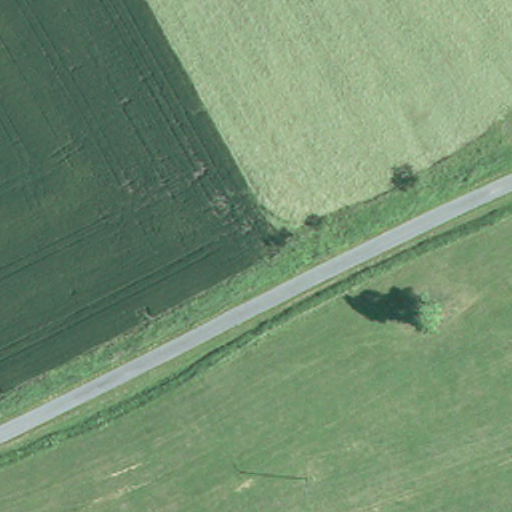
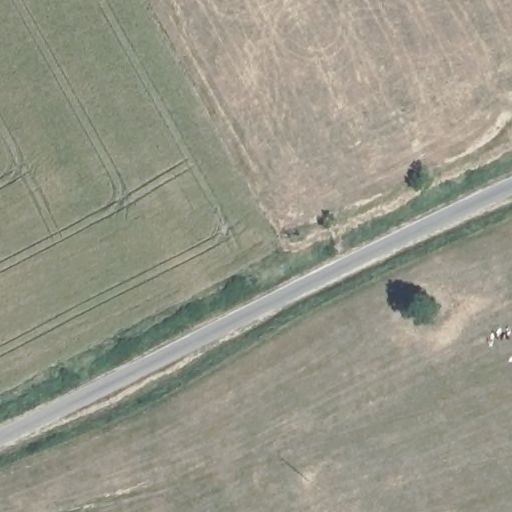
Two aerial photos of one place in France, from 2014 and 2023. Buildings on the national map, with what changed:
[]

